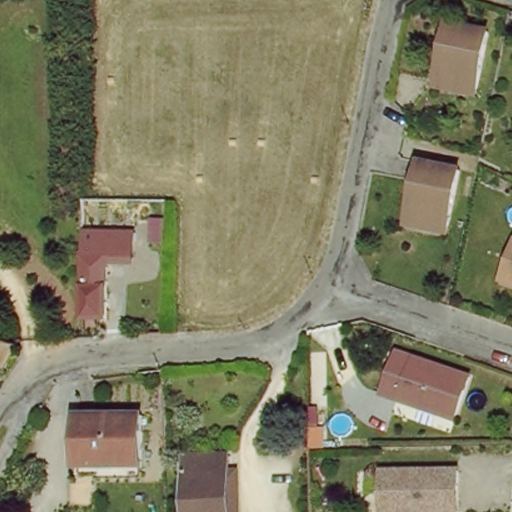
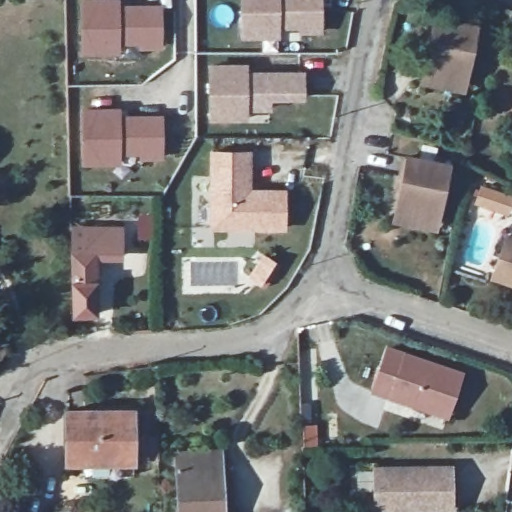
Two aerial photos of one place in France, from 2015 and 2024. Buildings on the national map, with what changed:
new [(82,55),(82,0),(120,0),(120,4),(162,6),(163,48),(140,51),(139,46),(121,46),(121,56),(82,55)]
new [(323,35),(300,35),(299,29),(280,30),(281,38),(241,40),(241,0),(322,0),(323,35)]
unchanged [(423,71),(435,22),(475,31),(463,88),(462,93),(421,84),(423,71)]
new [(209,123),(210,64),(248,64),(249,71),(305,72),(306,101),(273,102),(272,113),(248,113),(249,122),(209,123)]
new [(121,108),(121,115),(165,116),(165,160),(140,162),(140,156),(122,156),(122,166),(83,167),(82,109),(121,108)]
new [(253,150),(252,190),(286,191),(283,231),(210,231),(210,151),(253,150)]
unchanged [(394,225),(397,213),(404,181),(408,163),(408,162),(448,171),(436,229),(435,234),(394,225)]
new [(123,226),(125,262),(98,261),(98,281),(100,317),(73,318),(71,282),(72,227),(123,226)]
unchanged [(484,277),(498,236),(512,241),(512,287),(484,277)]
demolished [(103,312),(80,313),(78,252),(102,251),(103,312)]
unchanged [(461,378),(447,420),(379,398),(371,395),(379,375),(386,354),(461,378)]
unchanged [(130,415),(132,466),(64,467),(64,416),(130,415)]
new [(223,449),(224,467),(232,467),(234,512),(177,512),(174,451),(223,449)]
unchanged [(367,511),(366,504),(366,468),(370,468),(443,467),(444,509),(392,510),(371,510),(367,511)]
demolished [(220,468),(221,512),(178,512),(176,469),(220,468)]

